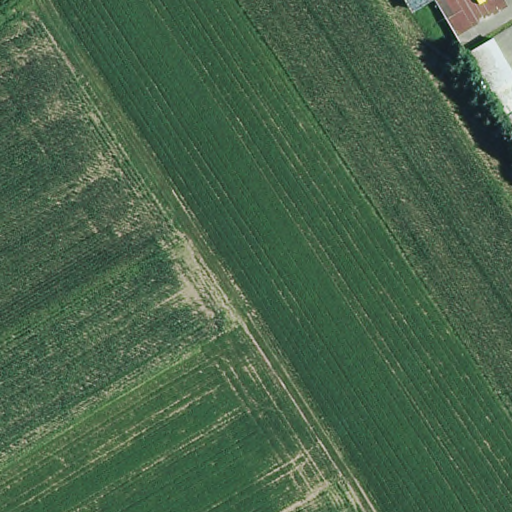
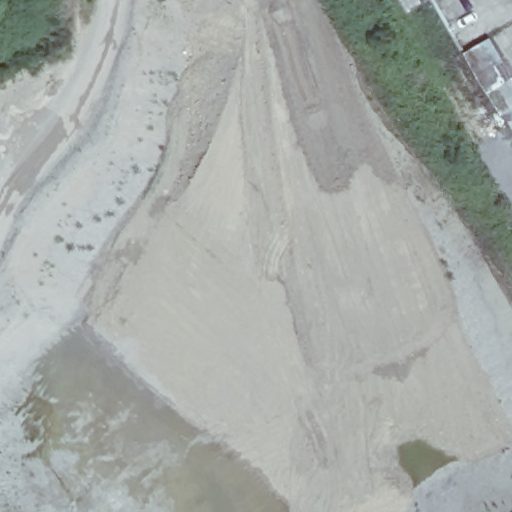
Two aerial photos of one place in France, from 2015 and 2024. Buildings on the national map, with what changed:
unchanged [(406,0),(426,0),(412,9),(406,0)]
unchanged [(512,72),(512,110),(504,115),(467,53),(492,39),(512,72)]

